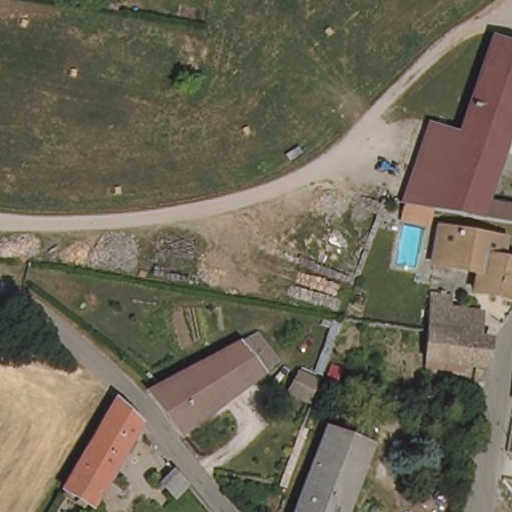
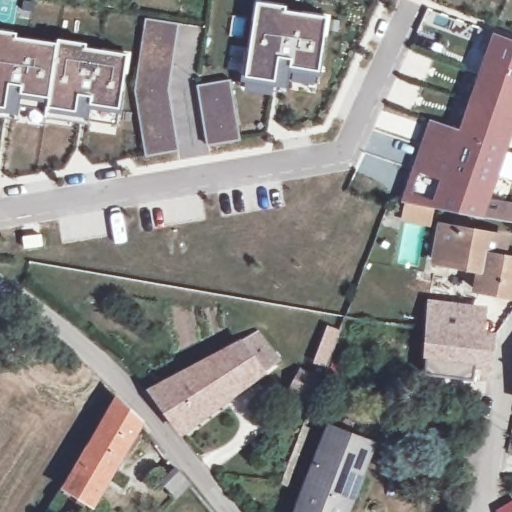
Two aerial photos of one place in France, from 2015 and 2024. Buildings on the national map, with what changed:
new [(245,84),(246,76),(259,2),(288,7),(287,11),(328,17),(317,84),(301,82),(289,80),(288,82),(287,91),(245,84)]
new [(178,27),(168,86),(136,81),(146,22),(178,27)]
new [(76,121),(48,116),(50,107),(49,110),(22,106),(20,119),(0,115),(0,30),(20,33),(20,36),(61,43),(61,41),(89,46),(88,47),(130,55),(117,126),(89,121),(77,119),(76,121)]
unchanged [(460,129),(489,43),(512,52),(512,141),(492,205),(512,210),(512,229),(496,225),(486,223),(487,218),(482,217),(470,214),(436,207),(445,175),(460,129)]
new [(231,80),(240,140),(208,144),(200,84),(231,80)]
new [(137,90),(168,86),(176,146),(145,150),(137,90)]
unchanged [(445,175),(436,207),(404,199),(430,119),(460,129),(445,175)]
unchanged [(445,222),(510,239),(506,259),(512,261),(512,293),(479,286),(482,264),(438,253),(445,222)]
unchanged [(432,325),(435,291),(452,293),(452,304),(479,308),(477,335),(432,325)]
new [(341,327),(326,365),(315,360),(330,323),(341,327)]
unchanged [(477,335),(495,337),(491,365),(430,356),(432,327),(432,325),(477,335)]
unchanged [(270,375),(181,437),(151,390),(243,340),(270,375)]
new [(321,379),(312,400),(293,392),(301,371),(321,379)]
unchanged [(99,503),(64,482),(115,397),(147,429),(99,503)]
unchanged [(312,466),(322,432),(370,442),(348,512),(297,512),(312,466)]
unchanged [(188,483),(172,498),(160,487),(176,472),(188,483)]

